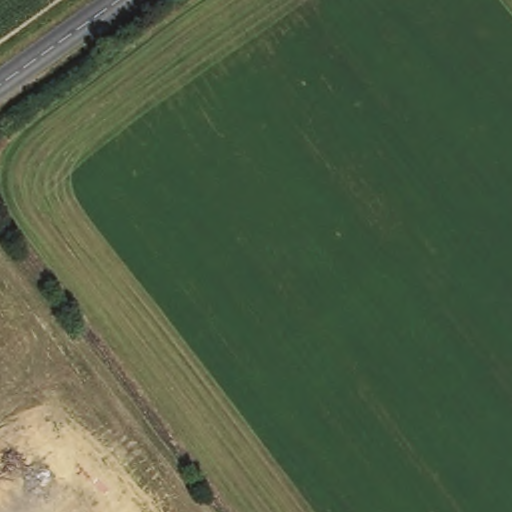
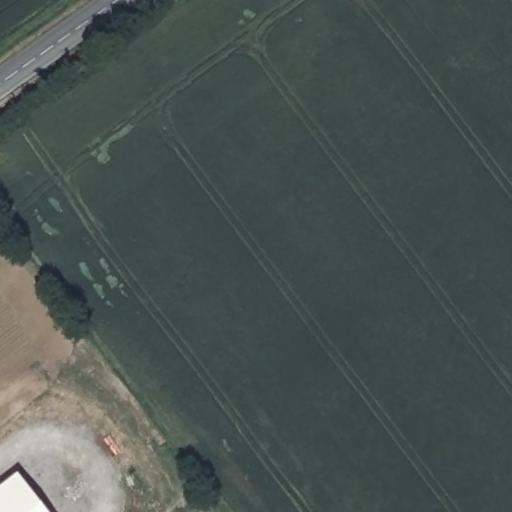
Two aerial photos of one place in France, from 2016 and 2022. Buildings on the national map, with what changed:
new [(0,488),(19,474),(48,512),(0,512),(0,488)]

